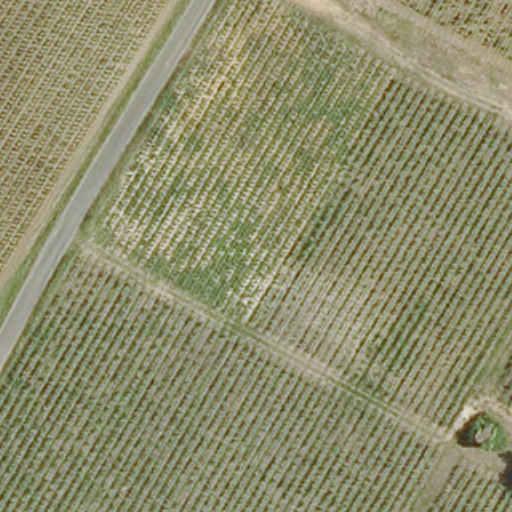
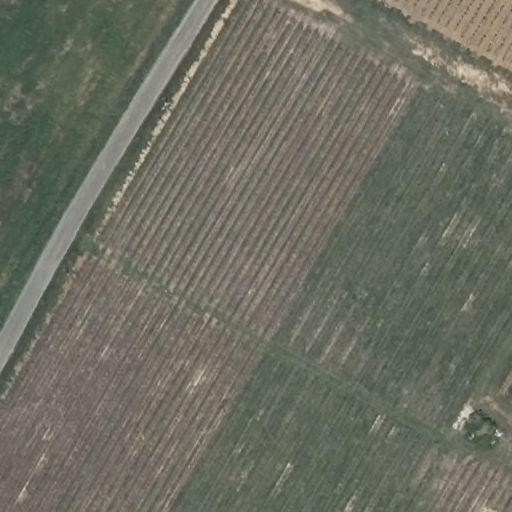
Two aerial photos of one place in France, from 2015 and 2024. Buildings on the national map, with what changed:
unchanged [(499,433),(491,449),(468,437),(476,420),(499,433)]

